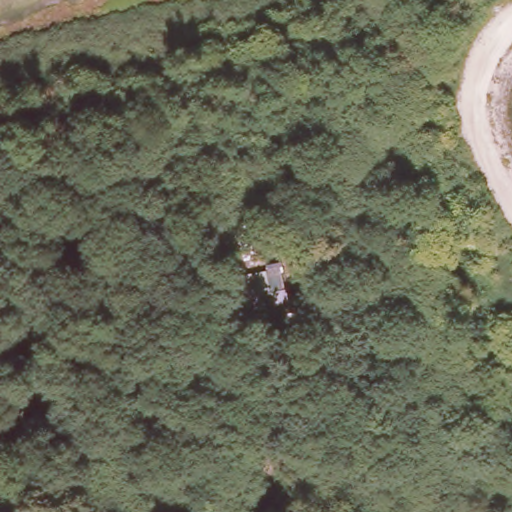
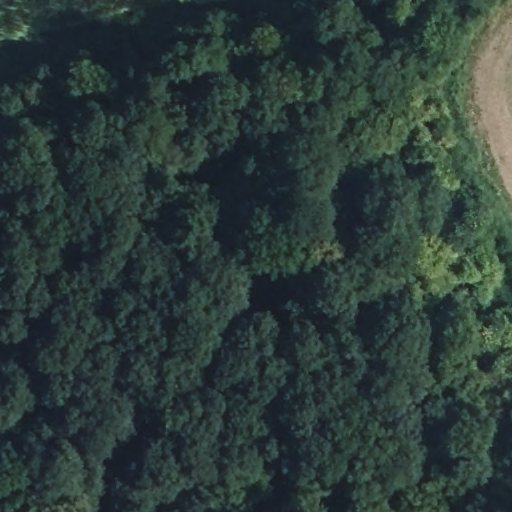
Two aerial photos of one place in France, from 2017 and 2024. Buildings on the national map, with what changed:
unchanged [(380,141),(385,158),(367,164),(361,146),(380,141)]

